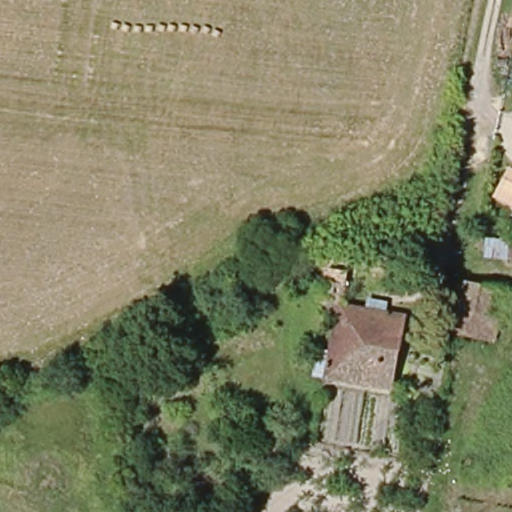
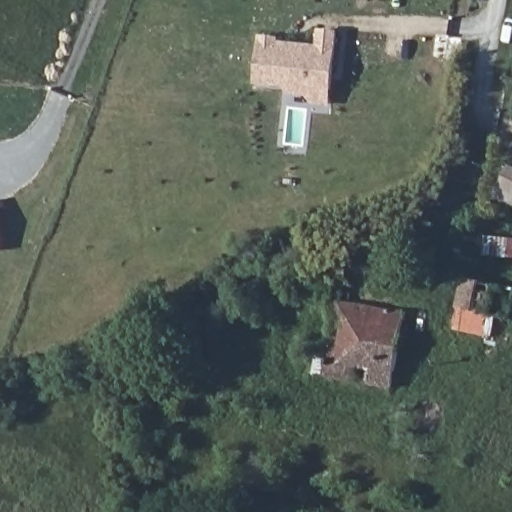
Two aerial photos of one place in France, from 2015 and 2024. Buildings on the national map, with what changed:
new [(311,103),(305,96),(288,94),(281,86),(254,84),(258,37),(274,40),(274,44),(295,46),(301,46),(316,47),(317,31),(333,33),(328,91),(327,105),(311,103)]
new [(509,166),(512,167),(512,206),(494,198),(509,166)]
unchanged [(512,242),(512,259),(485,256),(487,241),(512,242)]
unchanged [(340,264),(336,308),(330,307),(307,305),(311,262),(340,264)]
unchanged [(512,291),(512,296),(504,341),(454,332),(465,282),(512,291)]
unchanged [(336,308),(407,313),(405,384),(329,381),(330,307),(336,308)]

